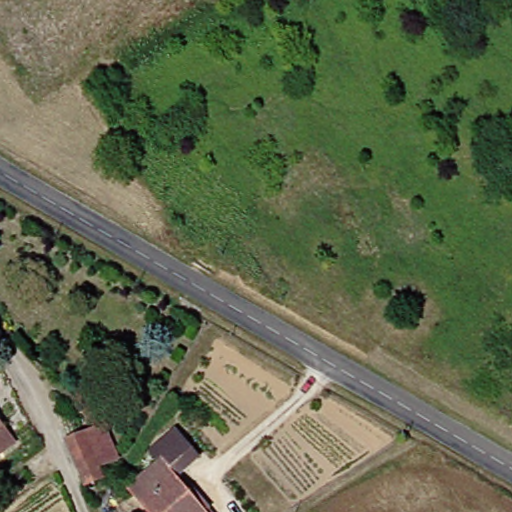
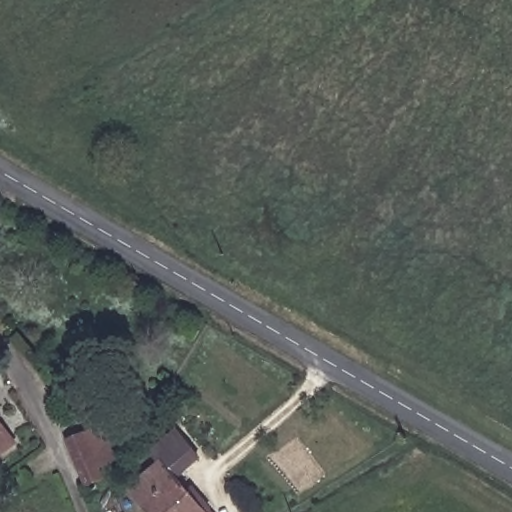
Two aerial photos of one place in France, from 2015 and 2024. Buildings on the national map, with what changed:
unchanged [(0,417),(7,427),(18,443),(0,456),(0,417)]
unchanged [(74,441),(110,427),(122,458),(103,466),(107,477),(91,484),(74,441)]
unchanged [(214,508),(209,512),(155,512),(135,488),(165,461),(157,451),(180,432),(203,458),(180,478),(192,492),(197,488),(214,508)]

